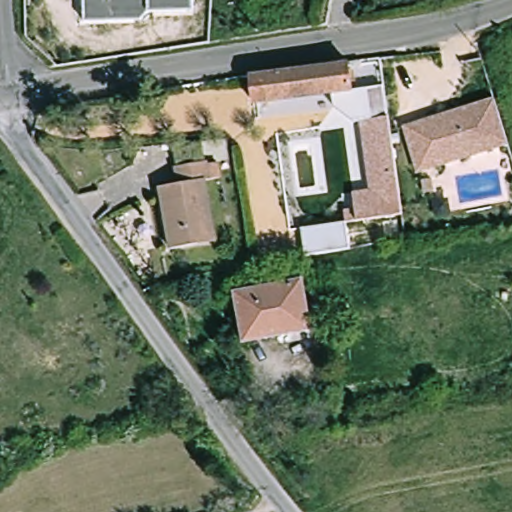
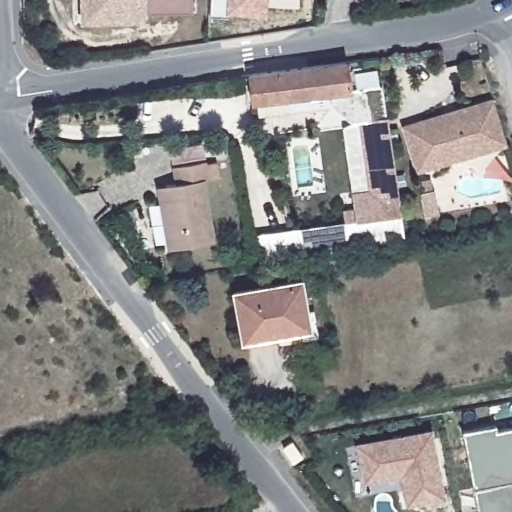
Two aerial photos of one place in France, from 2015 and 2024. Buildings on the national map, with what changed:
unchanged [(82,21),(82,13),(81,0),(191,0),(192,10),(147,11),(140,19),(82,21)]
new [(267,15),(225,13),(211,12),(212,0),(269,0),(267,15)]
unchanged [(350,89),(253,102),(248,74),(347,61),(350,89)]
new [(382,84),(386,114),(357,118),(350,119),(332,107),(330,92),(350,89),(382,84)]
unchanged [(492,98),(495,108),(505,135),(507,142),(416,171),(402,126),(492,98)]
unchanged [(386,114),(400,213),(345,221),(343,212),(353,210),(350,191),(367,189),(357,118),(386,114)]
unchanged [(215,240),(167,249),(157,186),(175,183),(172,166),(205,160),(205,163),(215,162),(217,177),(203,179),(215,240)]
unchanged [(430,178),(432,191),(422,192),(420,179),(430,178)]
new [(348,247),(302,253),(298,227),(345,221),(348,247)]
unchanged [(309,326),(280,331),(280,334),(242,341),(233,292),(300,279),(309,326)]
new [(512,426),(512,512),(477,512),(462,431),(495,424),(497,429),(512,426)]
new [(433,429),(445,499),(405,507),(399,476),(363,483),(355,443),(433,429)]

